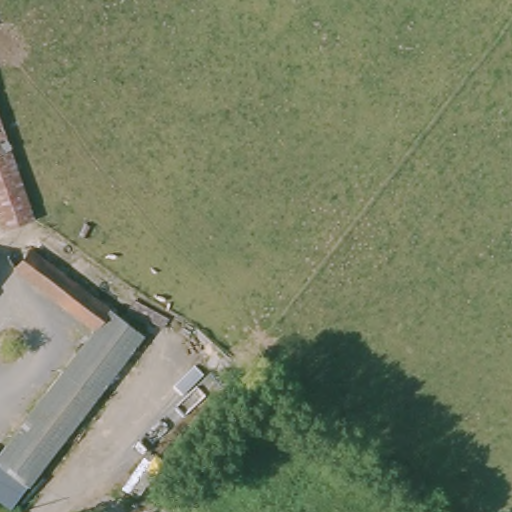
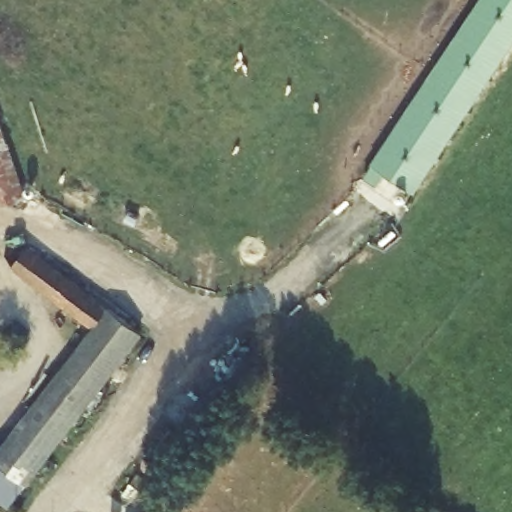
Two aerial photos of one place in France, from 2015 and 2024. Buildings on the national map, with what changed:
new [(367,175),(481,0),(512,0),(512,54),(413,212),(367,175)]
unchanged [(27,217),(26,217),(0,226),(0,139),(27,217)]
unchanged [(11,510),(0,501),(0,455),(94,327),(11,261),(8,245),(15,236),(144,332),(11,510)]

